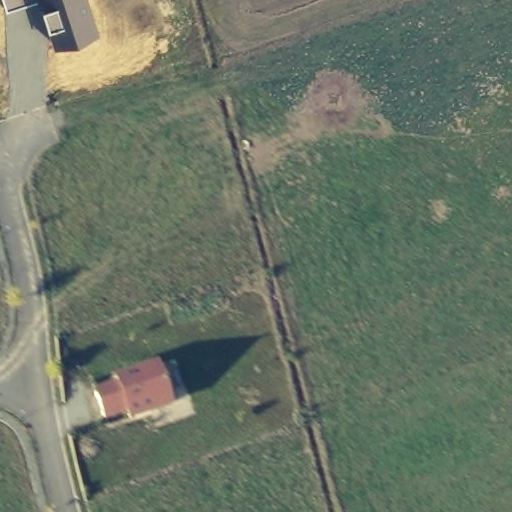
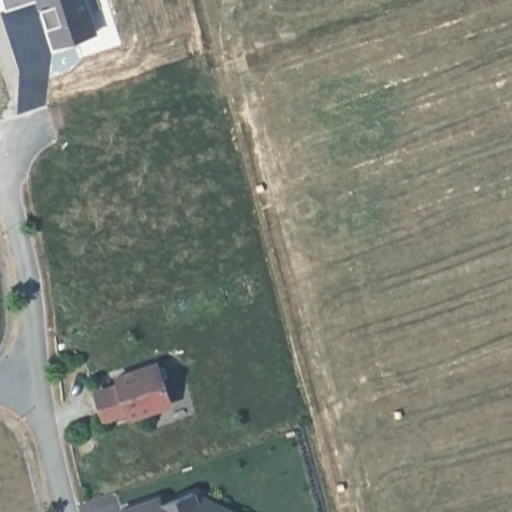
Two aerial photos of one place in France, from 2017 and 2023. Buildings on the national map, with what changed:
unchanged [(2,0),(87,0),(98,34),(55,50),(36,0),(5,11),(2,0)]
unchanged [(115,382),(111,376),(156,361),(172,403),(130,420),(128,414),(105,423),(92,390),(115,382)]
new [(160,507),(192,493),(231,512),(120,512),(157,500),(160,507)]

